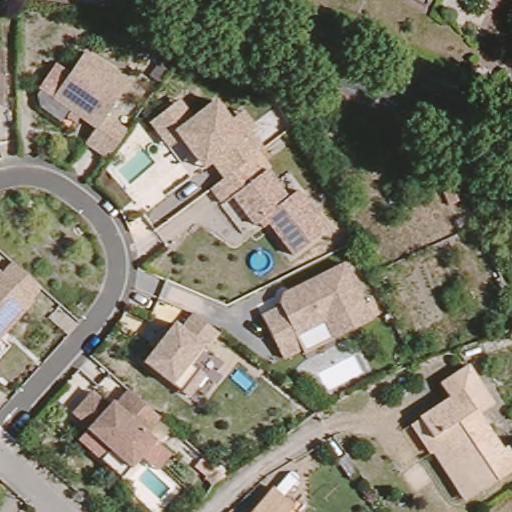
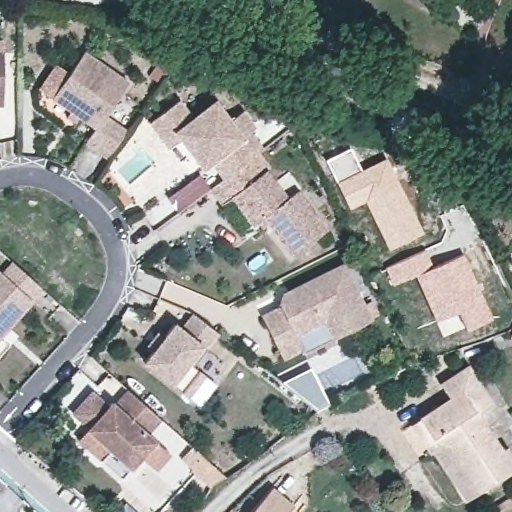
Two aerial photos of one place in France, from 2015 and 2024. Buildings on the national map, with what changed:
unchanged [(7,47),(6,100),(0,100),(0,47),(7,47)]
unchanged [(126,83),(103,116),(124,131),(106,158),(84,143),(94,129),(50,99),(82,52),(126,83)]
unchanged [(265,224),(252,234),(233,205),(220,211),(208,193),(219,181),(205,163),(194,171),(175,136),(164,146),(148,121),(181,98),(191,115),(218,98),(228,118),(240,110),(267,150),(254,160),(263,176),(268,174),(286,198),(301,190),(330,232),(290,259),(265,224)]
new [(423,231),(387,249),(364,202),(349,209),(335,182),(324,159),(349,146),(361,169),(386,156),(423,231)]
new [(492,318),(464,330),(456,314),(436,323),(414,276),(392,286),(384,267),(424,249),(433,266),(463,253),(492,318)]
unchanged [(2,276),(15,263),(43,291),(0,337),(0,275),(2,276)]
unchanged [(373,318),(335,338),(326,320),(297,334),(304,348),(285,357),(263,315),(282,305),(282,304),(284,293),(287,292),(345,263),(373,318)]
unchanged [(185,397),(180,392),(142,363),(172,324),(180,330),(192,314),(216,334),(204,349),(191,366),(197,371),(202,376),(185,397)]
unchanged [(501,447),(512,465),(475,491),(438,433),(431,438),(419,416),(450,397),(439,383),(462,366),(484,403),(472,413),(498,449),(501,447)]
unchanged [(99,449),(105,443),(90,430),(91,428),(75,414),(89,398),(94,392),(111,407),(114,403),(117,406),(131,391),(163,420),(150,435),(158,442),(133,469),(129,466),(124,472),(99,449)]
unchanged [(423,451),(408,425),(419,416),(431,438),(438,433),(475,491),(462,500),(430,451),(423,451)]
unchanged [(267,488),(291,504),(284,512),(245,512),(267,488)]

